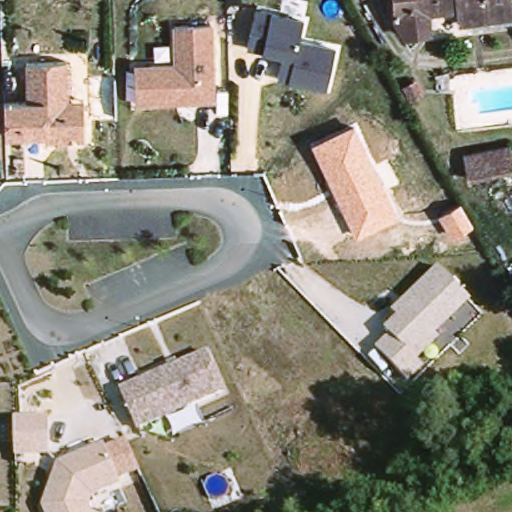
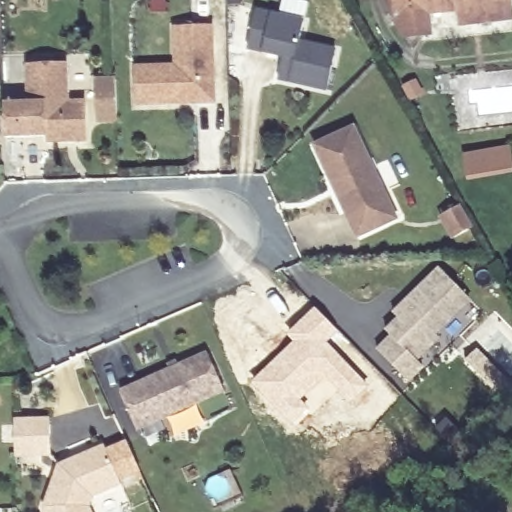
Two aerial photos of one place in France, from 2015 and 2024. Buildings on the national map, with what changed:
unchanged [(430,16),(438,15),(439,21),(438,30),(437,32),(421,37),(411,21),(403,0),(428,0),(430,16)]
unchanged [(481,26),(479,10),(438,15),(430,16),(428,0),(512,0),(512,22),(481,26)]
unchanged [(306,19),(302,39),(337,49),(327,91),(278,80),(282,58),(247,49),(257,7),(306,19)]
unchanged [(215,22),(217,104),(137,108),(135,65),(174,63),(174,25),(215,22)]
unchanged [(26,62),(70,61),(71,99),(85,99),(87,142),(45,144),(45,137),(6,139),(5,100),(29,100),(26,62)]
new [(118,79),(119,119),(102,119),(102,80),(118,79)]
unchanged [(354,122),(399,216),(356,238),(312,142),(354,122)]
unchanged [(512,154),(512,171),(470,178),(465,154),(510,146),(512,154)]
new [(462,205),(475,227),(457,237),(444,215),(462,205)]
unchanged [(472,299),(440,335),(442,338),(420,360),(425,367),(412,380),(379,351),(392,334),(387,328),(399,316),(394,311),(438,266),(472,299)]
new [(292,341),(286,333),(315,305),(339,331),(328,342),(369,384),(350,403),(325,380),(303,400),(312,410),(292,427),(250,382),(292,341)]
unchanged [(170,368),(169,362),(178,359),(180,363),(207,352),(226,392),(140,431),(122,389),(170,368)]
unchanged [(50,417),(52,457),(15,458),(15,417),(50,417)]
unchanged [(122,484),(92,497),(90,510),(92,512),(47,512),(44,505),(60,463),(105,445),(122,484)]

